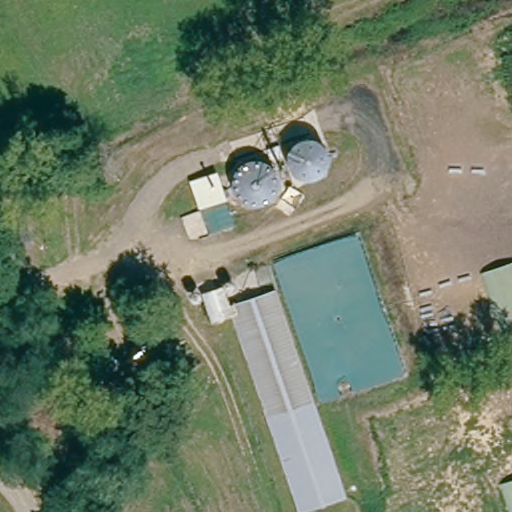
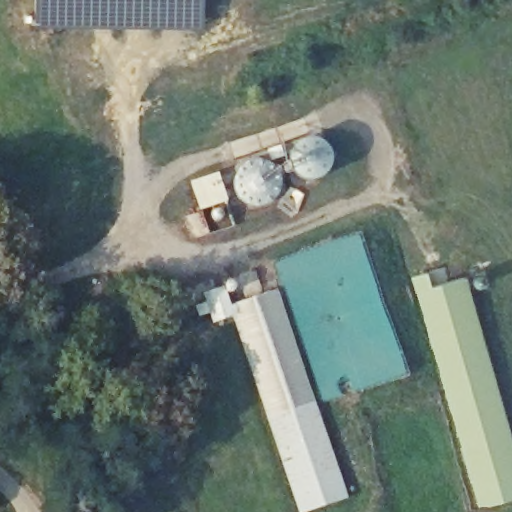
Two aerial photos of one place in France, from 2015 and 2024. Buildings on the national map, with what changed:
new [(34,0),(203,0),(203,29),(34,26),(34,0)]
unchanged [(338,171),(337,175),(336,178),(334,181),(331,183),(328,185),(325,187),(321,188),(318,188),(314,188),(311,187),(307,185),(304,183),(302,181),(300,178),(298,174),(297,171),(297,167),(297,164),(298,160),(300,157),(302,154),(304,151),(307,149),(311,148),(314,147),(318,147),(321,147),(325,148),(328,149),(331,152),(334,154),(336,157),(337,160),(338,164),(339,167),(338,171)]
unchanged [(277,158),(289,154),(292,164),(280,167),(277,158)]
unchanged [(288,195),(287,199),(285,203),(283,206),(280,209),(277,211),(273,213),(269,214),(265,214),(261,214),(257,213),(253,211),(250,209),(247,206),(245,203),(243,199),(242,195),(242,191),(242,187),(243,183),(245,180),(247,176),(250,173),(253,171),(257,170),(261,169),(265,168),(269,169),(273,170),(277,171),(280,174),(283,177),(285,180),(287,183),(288,187),(288,191),(288,195)]
new [(512,498),(479,508),(410,277),(428,272),(432,287),(465,275),(512,441),(512,498)]
unchanged [(203,298),(201,294),(220,287),(222,291),(228,305),(274,287),(355,493),(310,511),(231,315),(213,322),(203,298)]

